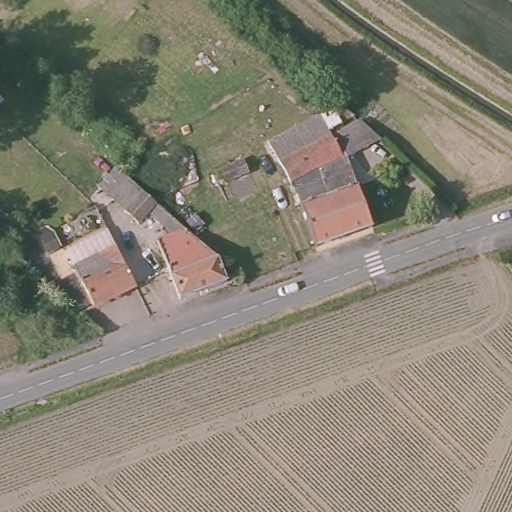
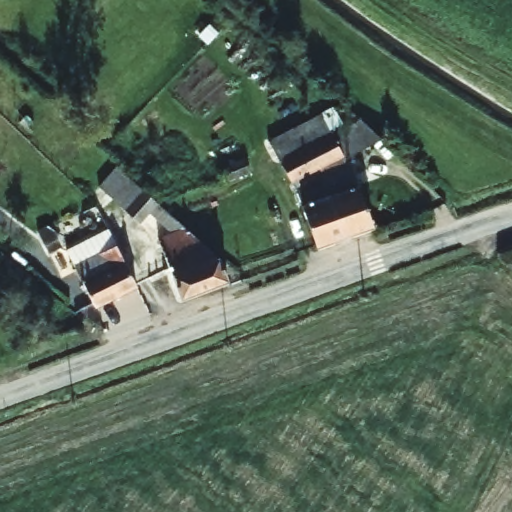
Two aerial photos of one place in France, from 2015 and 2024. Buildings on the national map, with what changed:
unchanged [(331,164),(314,173),(339,241),(311,251),(289,190),(289,191),(264,146),(315,120),(327,114),(334,126),(323,133),(326,139),(338,161),(331,164)]
unchanged [(343,161),(368,231),(339,241),(314,173),(331,164),(338,161),(326,139),(356,124),(376,143),(343,161)]
unchanged [(251,172),(228,182),(221,168),(244,158),(251,172)]
unchanged [(228,281),(181,299),(158,240),(173,234),(149,213),(139,224),(99,188),(117,168),(218,256),(228,281)]
unchanged [(60,252),(49,257),(38,237),(48,232),(51,239),(53,238),(60,252)]
unchanged [(136,291),(95,312),(67,256),(108,236),(136,291)]

